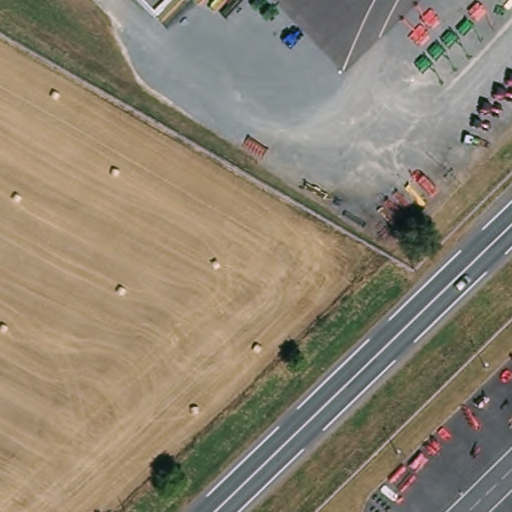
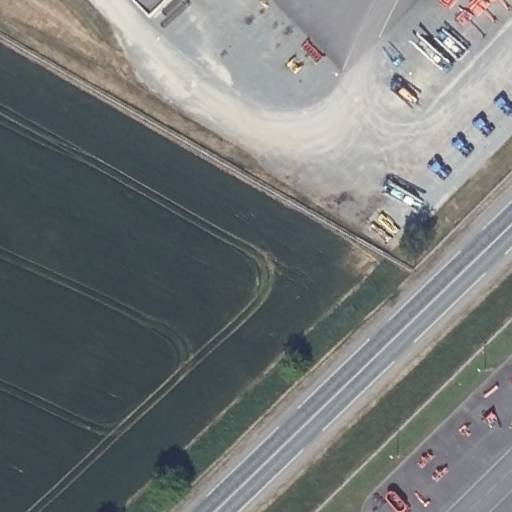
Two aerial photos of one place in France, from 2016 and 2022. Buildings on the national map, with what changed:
unchanged [(164,14),(148,0),(177,0),(164,14)]

